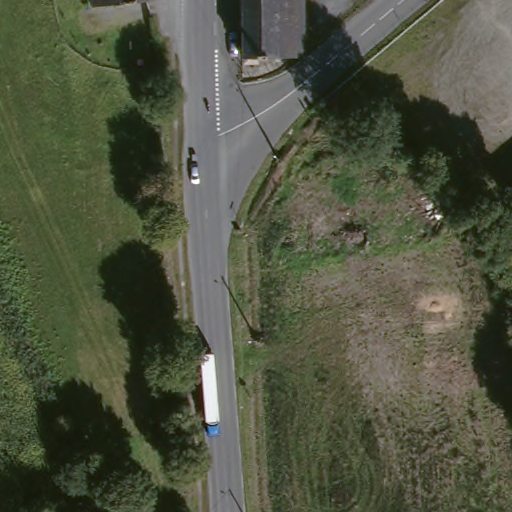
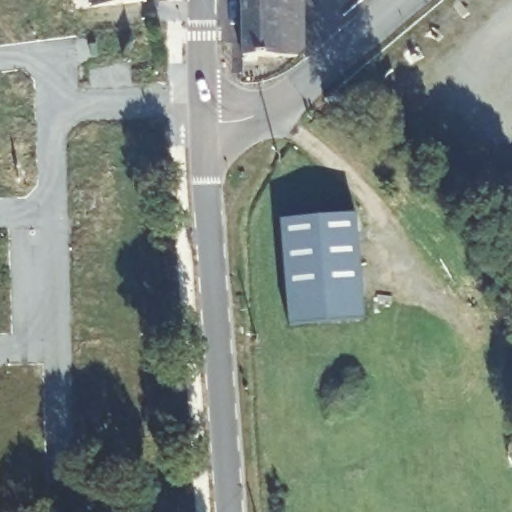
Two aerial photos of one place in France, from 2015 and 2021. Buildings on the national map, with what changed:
unchanged [(109,8),(107,0),(157,0),(157,1),(109,8)]
unchanged [(289,55),(287,67),(241,66),(240,0),(309,0),(307,53),(289,55)]
unchanged [(512,202),(512,210),(508,206),(512,202)]
new [(350,226),(357,331),(281,336),(275,232),(350,226)]

